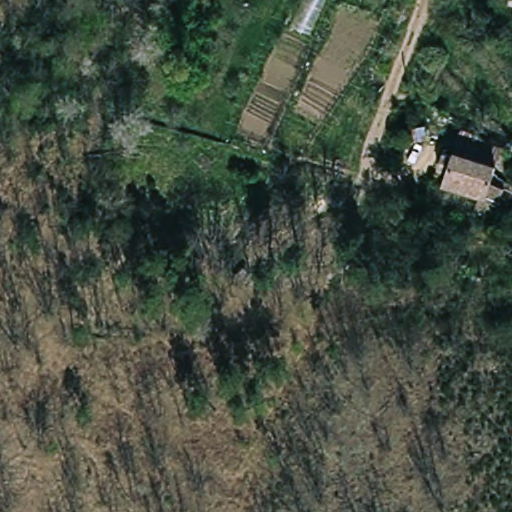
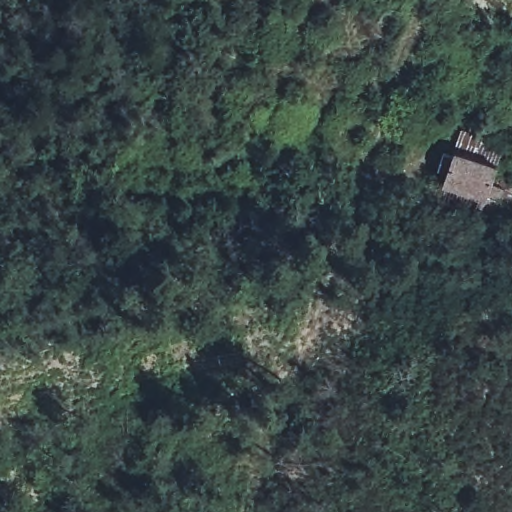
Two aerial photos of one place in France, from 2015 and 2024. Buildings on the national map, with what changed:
unchanged [(458,158),(467,132),(509,148),(502,171),(458,158)]
unchanged [(498,185),(512,189),(512,190),(502,216),(485,211),(489,198),(450,187),(451,182),(442,179),(447,160),(456,162),(458,158),(502,171),(498,185)]

